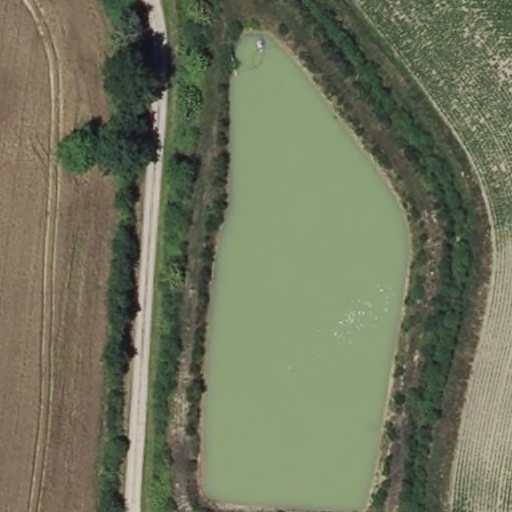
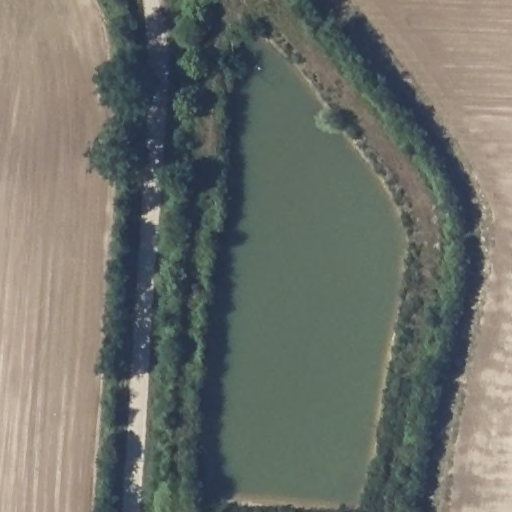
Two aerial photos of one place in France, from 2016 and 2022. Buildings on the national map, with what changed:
[]

